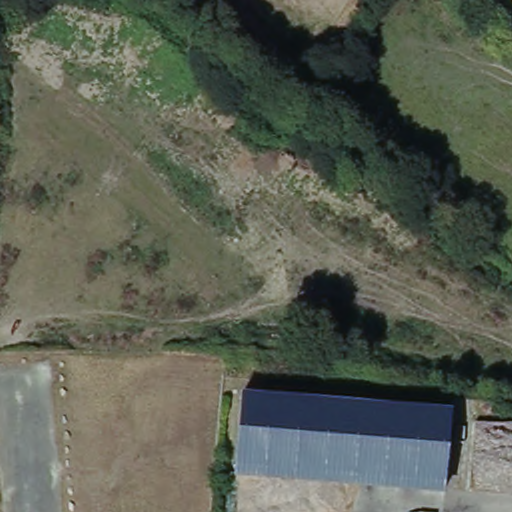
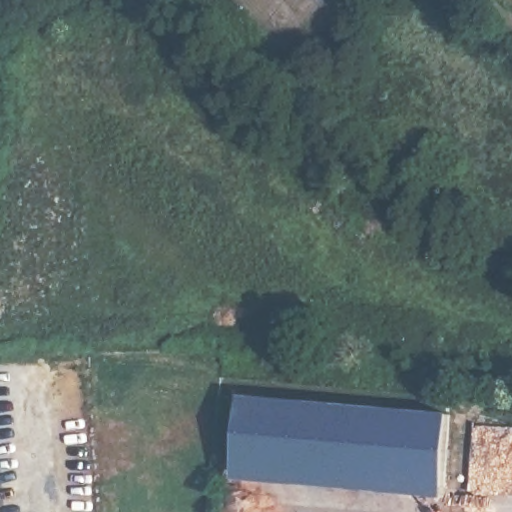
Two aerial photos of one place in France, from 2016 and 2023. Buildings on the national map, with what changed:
unchanged [(446,498),(235,480),(242,396),(453,414),(446,498)]

